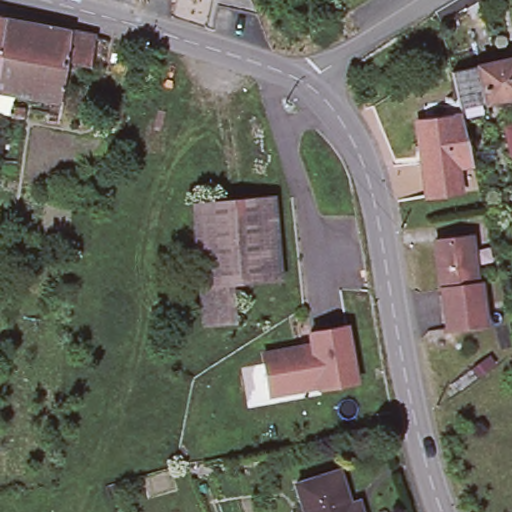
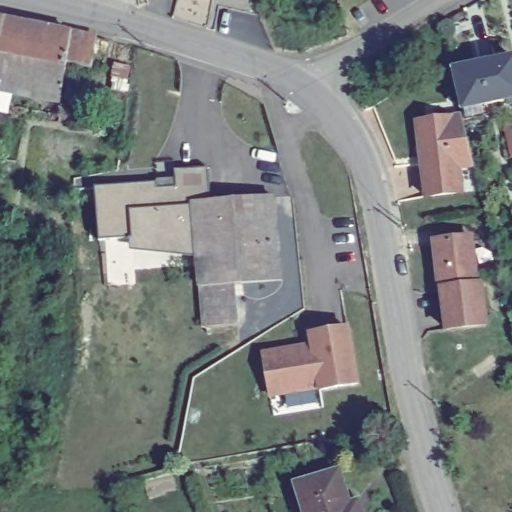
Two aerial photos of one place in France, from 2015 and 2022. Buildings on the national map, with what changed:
unchanged [(206,0),(213,0),(212,2),(206,0)]
unchanged [(0,112),(0,90),(0,79),(0,19),(11,21),(47,28),(37,97),(18,94),(15,115),(0,112)]
unchanged [(98,39),(94,68),(70,63),(64,102),(37,97),(47,28),(75,34),(98,39)]
unchanged [(463,102),(455,66),(512,54),(512,93),(492,97),(494,109),(466,114),(467,116),(477,159),(462,161),(465,187),(429,191),(420,115),(465,110),(463,102)]
new [(512,123),(512,158),(508,159),(502,125),(512,123)]
new [(131,252),(130,239),(101,241),(97,189),(156,184),(155,181),(177,179),(176,171),(208,169),(212,203),(187,206),(191,258),(131,252)]
unchanged [(266,197),(275,281),(227,286),(193,288),(187,206),(266,197)]
unchanged [(445,288),(436,240),(472,233),(481,282),(447,287),(445,288)]
unchanged [(481,282),(485,281),(492,322),(455,328),(447,287),(481,282)]
unchanged [(227,286),(230,323),(197,326),(193,288),(227,286)]
unchanged [(314,332),(340,327),(351,326),(361,382),(345,385),(324,388),(323,386),(313,388),(308,347),(317,346),(314,332)]
unchanged [(274,395),(267,352),(308,345),(308,347),(313,388),(274,395)]
unchanged [(330,471),(341,512),(293,512),(285,484),(330,471)]

